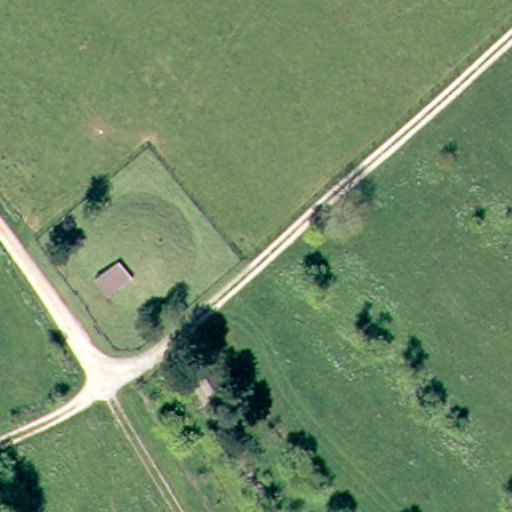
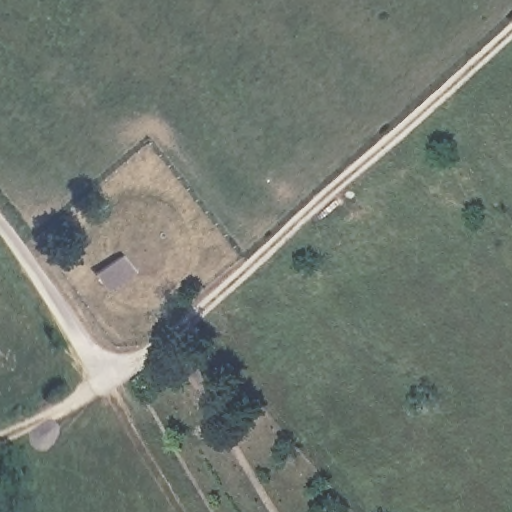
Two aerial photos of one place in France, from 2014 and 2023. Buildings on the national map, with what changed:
unchanged [(222,380),(211,387),(198,368),(211,361),(222,380)]

